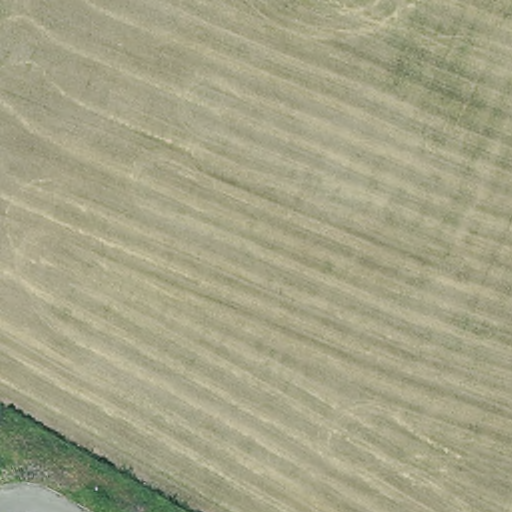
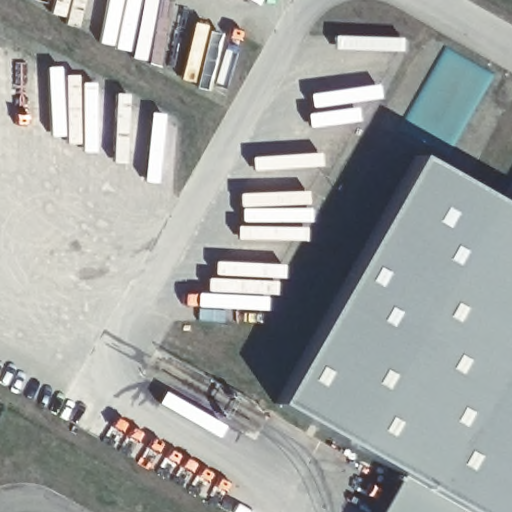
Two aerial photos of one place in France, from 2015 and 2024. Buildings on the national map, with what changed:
new [(425,156),(512,205),(512,512),(387,512),(408,475),(284,407),(425,156)]

